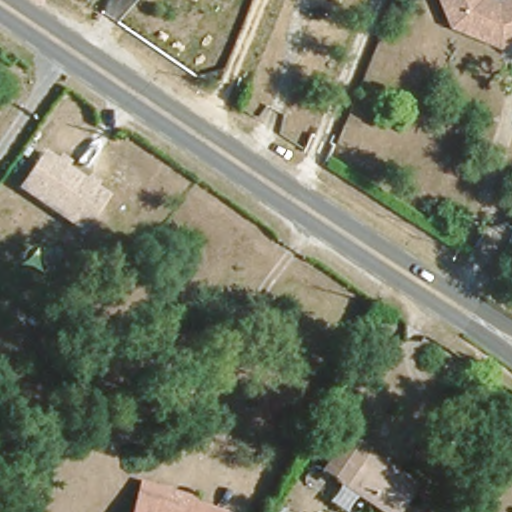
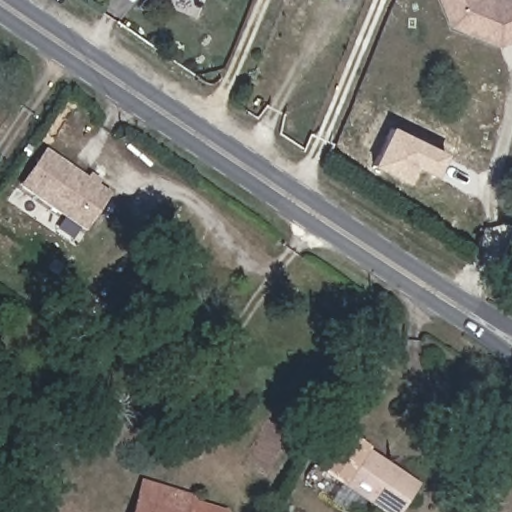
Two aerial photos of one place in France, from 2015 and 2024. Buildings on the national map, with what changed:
unchanged [(442,0),(512,0),(512,37),(498,42),(451,20),(442,0)]
new [(372,166),(390,126),(444,153),(434,176),(417,166),(407,185),(372,166)]
unchanged [(57,157),(62,152),(71,159),(68,166),(87,179),(91,173),(100,180),(96,186),(111,194),(86,231),(22,185),(47,150),(57,157)]
unchanged [(413,480),(390,512),(323,462),(346,430),(413,480)]
unchanged [(192,501),(191,508),(145,495),(140,512),(135,512),(144,480),(194,495),(192,501)]
unchanged [(191,508),(192,501),(225,510),(224,512),(140,512),(145,495),(191,508)]

